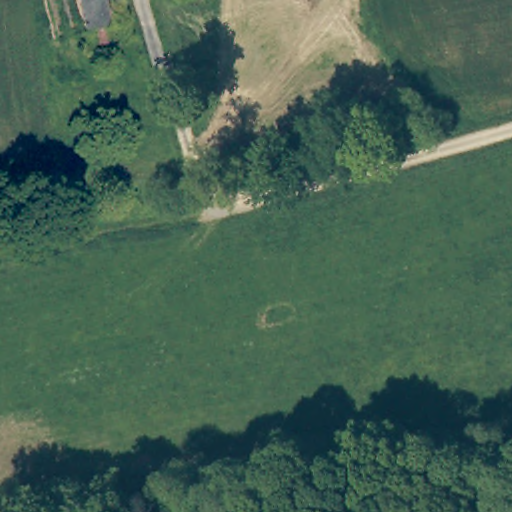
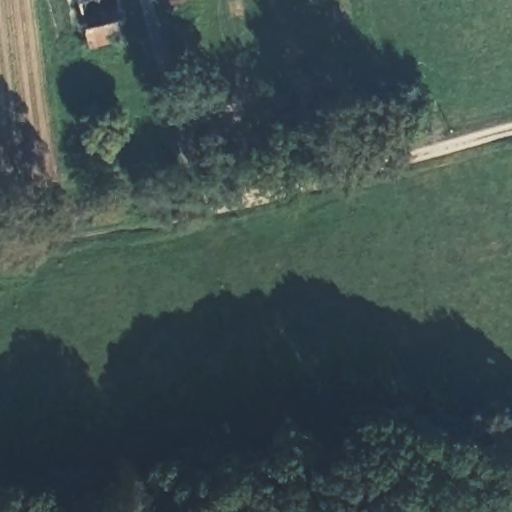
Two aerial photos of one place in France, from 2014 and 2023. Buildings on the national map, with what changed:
unchanged [(121,30),(83,38),(74,0),(115,0),(121,30)]

